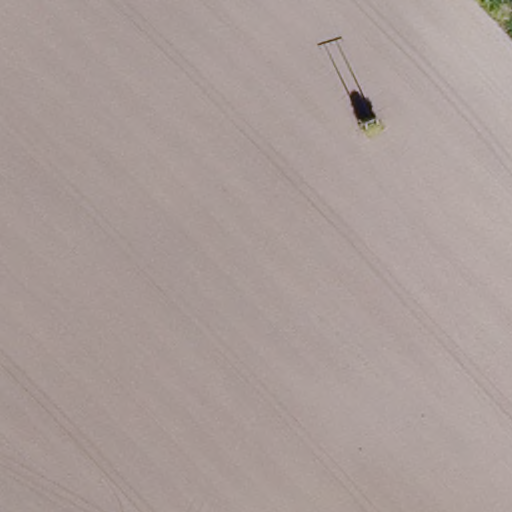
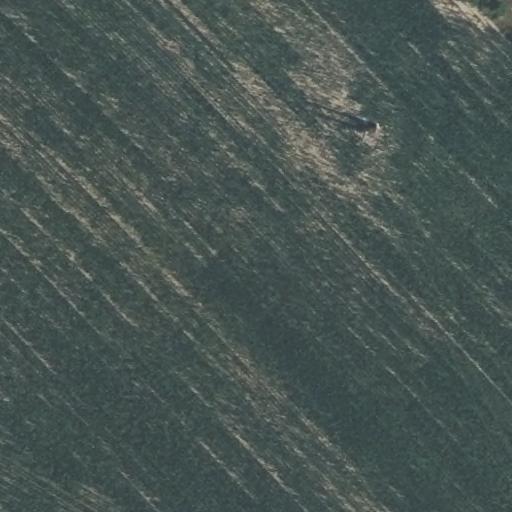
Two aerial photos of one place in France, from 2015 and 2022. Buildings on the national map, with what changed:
unchanged [(458,48),(468,56),(460,67),(450,61),(458,48)]
unchanged [(445,67),(461,79),(447,98),(431,89),(445,67)]

